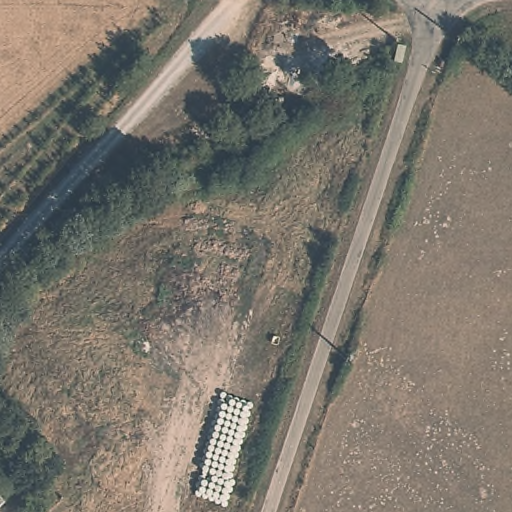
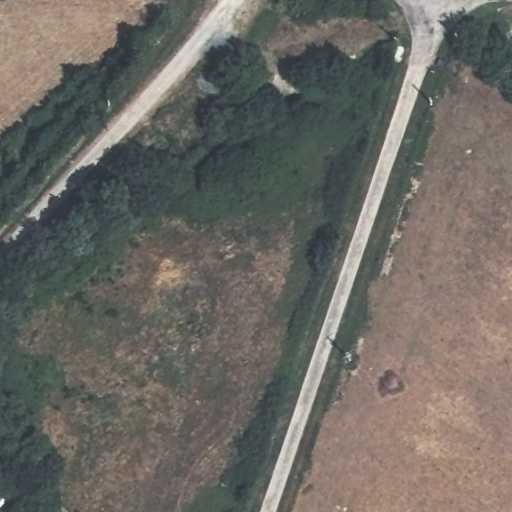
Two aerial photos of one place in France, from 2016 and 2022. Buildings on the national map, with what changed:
unchanged [(4,499),(0,504),(0,495),(4,499)]

